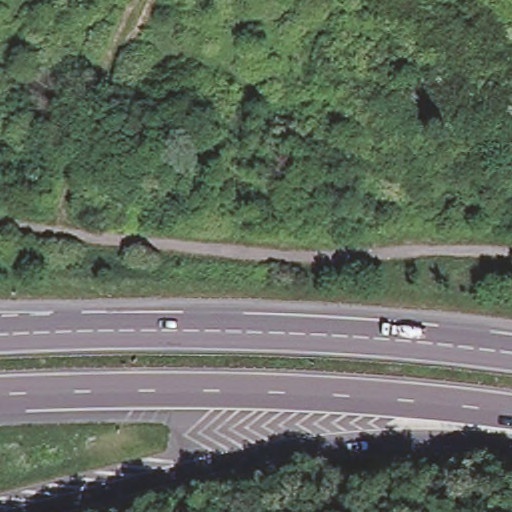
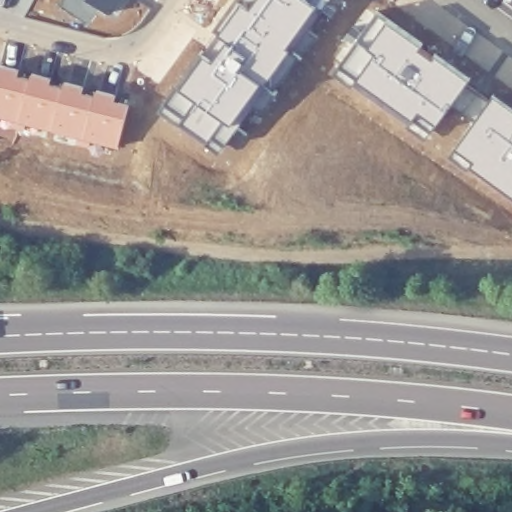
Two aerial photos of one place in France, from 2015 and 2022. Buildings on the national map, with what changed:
new [(109,16),(88,0),(123,0),(112,15),(109,16)]
new [(332,0),(218,157),(158,114),(240,0),(332,0)]
new [(468,80),(428,136),(333,75),(376,14),(468,80)]
new [(18,72),(16,77),(30,82),(31,76),(50,81),(49,86),(62,89),(63,84),(82,87),(80,93),(93,97),(95,92),(115,97),(114,102),(129,107),(118,152),(0,119),(0,66),(18,72)]
new [(512,196),(449,157),(493,97),(512,111),(512,196)]

